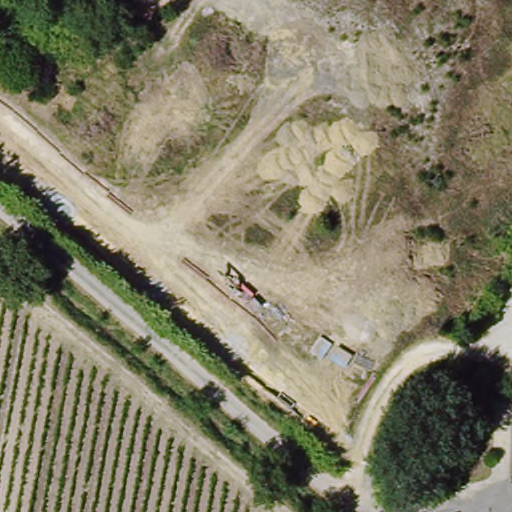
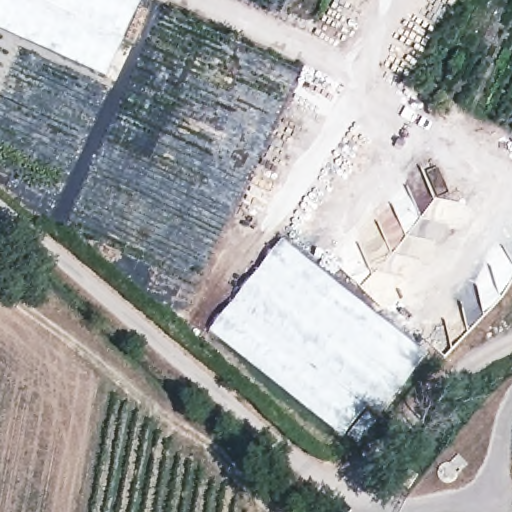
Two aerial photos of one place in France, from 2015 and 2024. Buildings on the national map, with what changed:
new [(106,76),(0,29),(0,0),(138,0),(142,2),(106,76)]
new [(428,357),(381,417),(370,408),(345,440),(211,331),(284,240),(428,357)]

